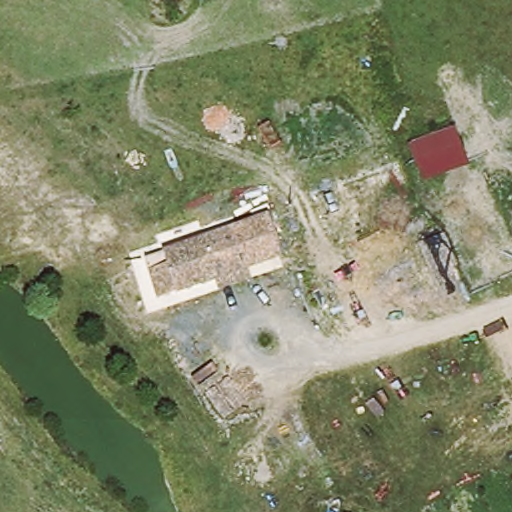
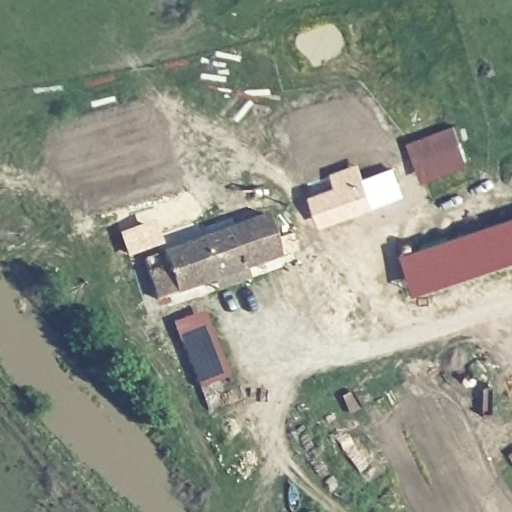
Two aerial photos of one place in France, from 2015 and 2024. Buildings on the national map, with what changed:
unchanged [(453,124),(468,164),(421,181),(405,141),(453,124)]
new [(334,183),(329,172),(358,161),(363,175),(373,208),(321,226),(309,193),(334,183)]
demolished [(399,163),(416,210),(329,245),(308,195),(399,163)]
new [(393,165),(404,197),(373,208),(363,175),(393,165)]
unchanged [(211,292),(207,281),(150,301),(137,260),(261,216),(275,256),(240,269),(244,280),(211,292)]
new [(512,261),(417,292),(402,253),(512,216),(512,261)]
new [(173,322),(203,311),(228,377),(199,388),(173,322)]

